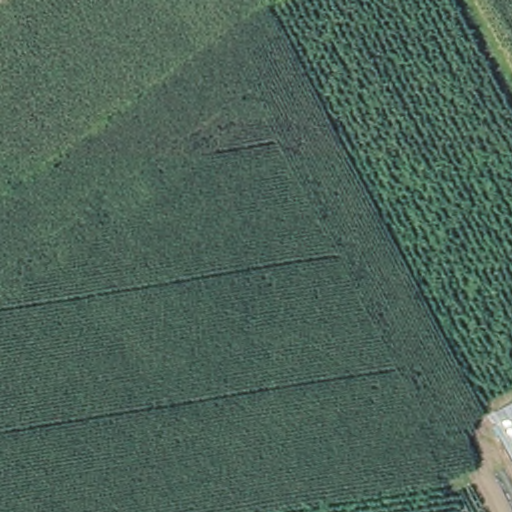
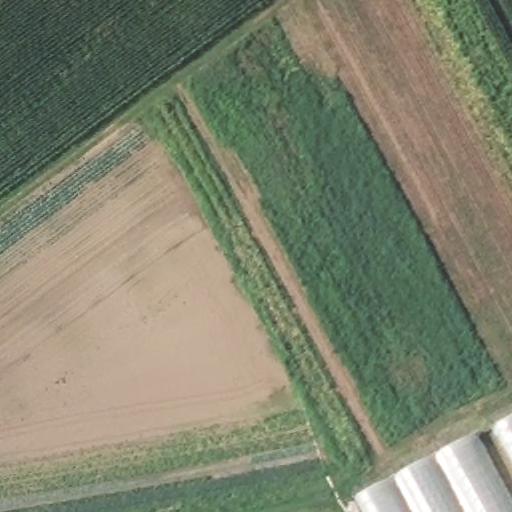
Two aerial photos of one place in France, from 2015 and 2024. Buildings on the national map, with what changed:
new [(512,459),(495,427),(512,417),(512,459)]
new [(512,512),(417,512),(397,474),(480,430),(512,490),(512,512)]
new [(362,512),(355,499),(398,476),(417,512),(362,512)]

